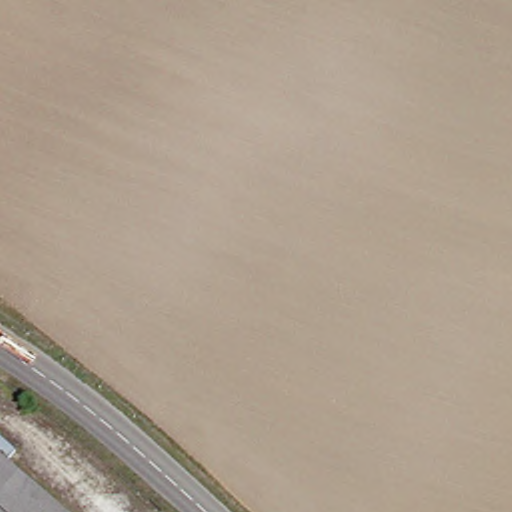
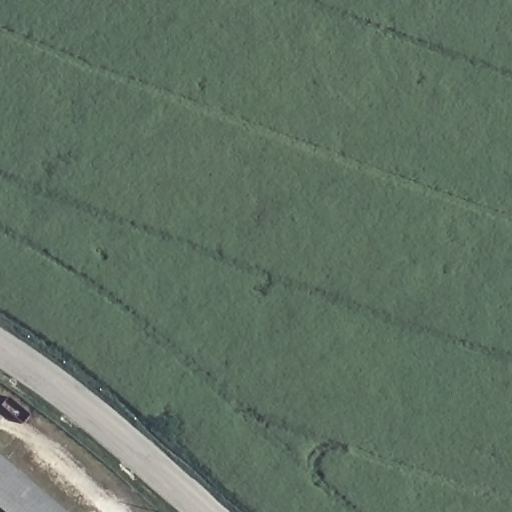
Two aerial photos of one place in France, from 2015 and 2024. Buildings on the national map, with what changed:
unchanged [(62,512),(0,512),(0,456),(62,512)]

